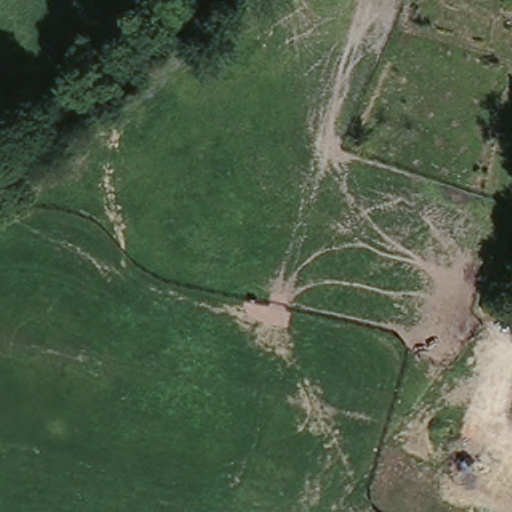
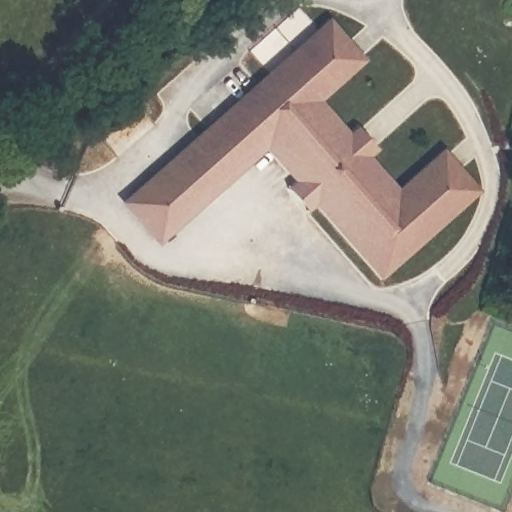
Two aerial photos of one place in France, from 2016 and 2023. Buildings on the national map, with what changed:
new [(322,25),(355,59),(310,101),(347,141),(359,132),(378,152),(366,164),(396,195),(441,151),(475,187),(389,267),(326,202),(317,212),(296,192),(306,177),(268,139),(169,237),(136,205),(322,25)]

